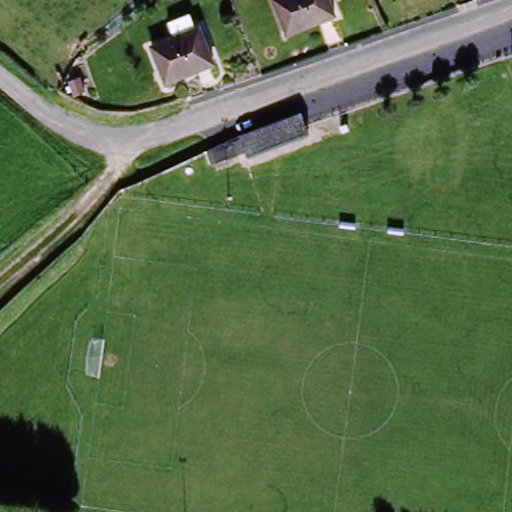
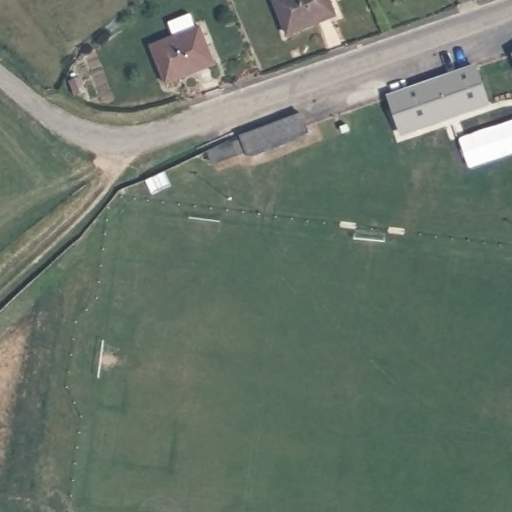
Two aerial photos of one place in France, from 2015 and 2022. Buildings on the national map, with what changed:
unchanged [(271,2),(276,0),(326,0),(334,19),(286,38),(271,2)]
unchanged [(154,50),(177,41),(171,27),(193,18),(199,32),(203,30),(218,67),(169,87),(154,50)]
new [(387,100),(473,70),(486,108),(401,137),(387,100)]
unchanged [(294,120),(305,144),(257,165),(246,140),(294,120)]

